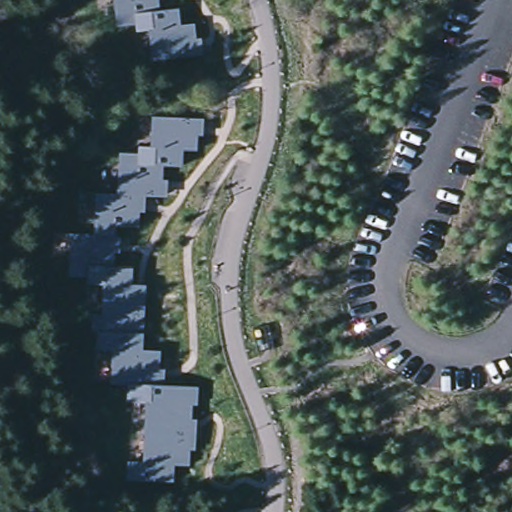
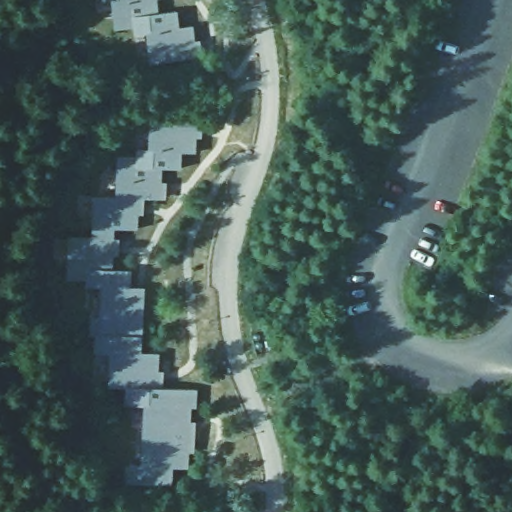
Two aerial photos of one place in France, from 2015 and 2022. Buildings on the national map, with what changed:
unchanged [(135,15),(137,26),(136,26),(117,28),(116,17),(115,0),(157,0),(158,13),(135,15)]
unchanged [(203,47),(211,46),(212,53),(200,55),(200,48),(195,48),(197,58),(156,62),(152,31),(137,33),(136,26),(137,26),(135,15),(158,13),(177,11),(180,27),(193,26),(195,42),(202,41),(203,47)]
unchanged [(155,148),(156,117),(197,119),(197,129),(200,130),(201,122),(212,123),(212,130),(205,130),(204,136),(196,135),(196,151),(182,151),(181,168),(162,166),(139,165),(140,155),(140,147),(155,148)]
unchanged [(168,190),(176,190),(176,197),(164,197),(165,190),(160,189),(160,198),(138,197),(118,196),(118,195),(120,165),(120,154),(140,155),(139,165),(162,166),(161,183),(168,184),(168,190)]
unchanged [(114,227),(113,237),(95,236),(95,225),(96,194),(118,195),(118,196),(138,197),(138,206),(142,206),(142,199),(155,199),(154,207),(145,206),(145,212),(138,212),(137,228),(114,227)]
unchanged [(70,266),(71,235),(95,236),(113,237),(113,247),(117,247),(117,240),(130,240),(130,247),(120,247),(120,253),(113,253),(112,269),(90,268),(89,278),(88,278),(70,277),(70,266)]
unchanged [(93,316),(102,316),(104,286),(88,286),(88,278),(89,278),(90,268),(112,269),(131,270),(130,287),(137,287),(137,291),(143,291),(142,299),(144,299),(142,336),(98,334),(92,334),(93,316)]
unchanged [(162,360),(170,360),(169,372),(166,372),(165,378),(158,378),(158,387),(157,388),(129,386),(111,386),(113,352),(97,352),(98,334),(142,336),(141,352),(160,353),(158,372),(162,372),(162,360)]
unchanged [(132,404),(128,404),(129,386),(157,388),(158,387),(197,389),(196,407),(191,407),(190,423),(198,423),(197,429),(200,429),(200,441),(193,441),(193,429),(190,429),(188,468),(173,467),(172,484),(128,482),(128,464),(129,464),(147,465),(150,405),(132,404)]

